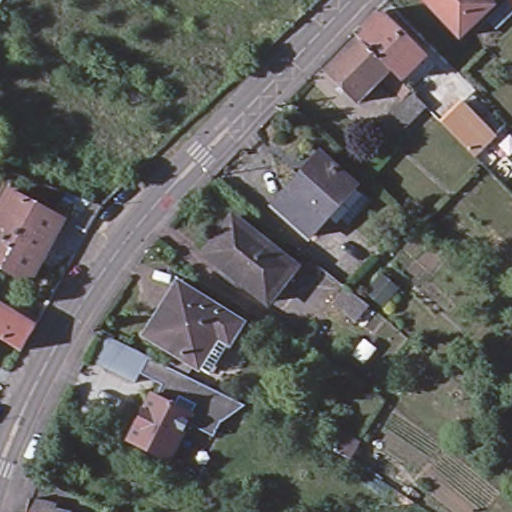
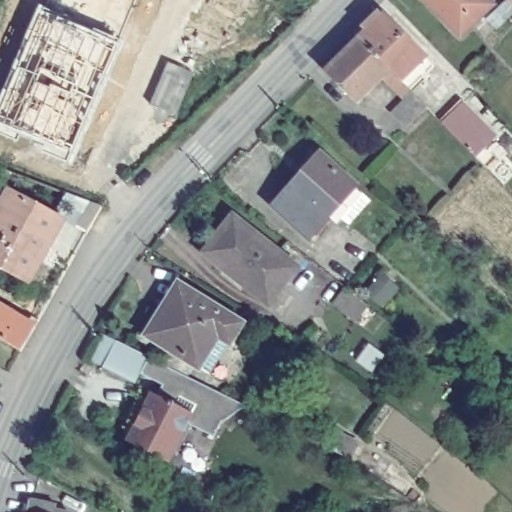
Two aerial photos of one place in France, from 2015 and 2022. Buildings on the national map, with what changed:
new [(43,156),(48,146),(20,136),(15,144),(0,137),(0,107),(45,0),(137,0),(68,164),(43,156)]
unchanged [(460,38),(428,0),(487,0),(495,8),(460,38)]
unchanged [(512,0),(512,8),(505,0),(512,0)]
unchanged [(353,99),(322,66),(355,33),(378,11),(418,54),(397,75),(408,86),(423,103),(403,124),(387,108),(399,96),(377,75),(353,99)]
unchanged [(466,146),(442,122),(452,114),(462,104),(484,128),(492,135),(473,154),(466,146)]
unchanged [(317,158),(352,187),(310,232),(275,204),(317,158)]
unchanged [(20,283),(0,272),(0,210),(7,196),(60,224),(43,255),(27,287),(20,283)]
unchanged [(295,268),(265,303),(208,256),(223,236),(218,233),(232,216),(295,268)]
unchanged [(148,340),(180,289),(244,327),(232,346),(222,340),(202,372),(148,340)]
unchanged [(0,337),(0,306),(7,311),(43,331),(29,355),(0,337)]
unchanged [(138,376),(134,385),(117,377),(102,368),(113,343),(130,351),(147,359),(138,376)]
unchanged [(162,464),(124,443),(148,397),(152,400),(188,418),(162,464)]
unchanged [(30,498),(57,503),(55,512),(57,512),(28,512),(30,498)]

